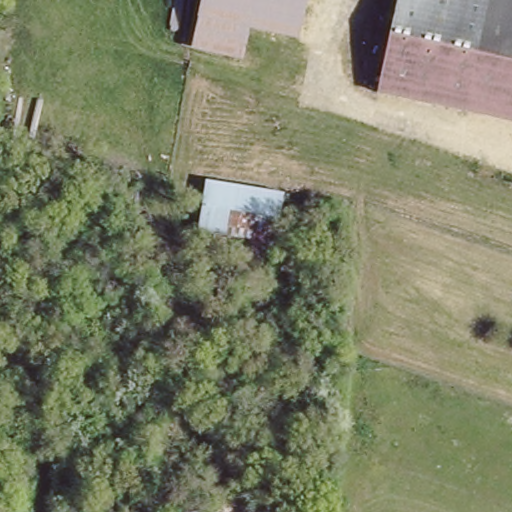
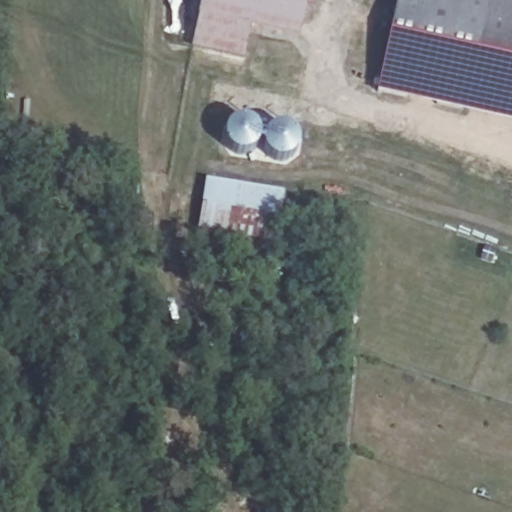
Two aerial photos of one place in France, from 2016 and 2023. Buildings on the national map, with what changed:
unchanged [(246,27),(239,62),(193,52),(203,0),(303,0),(296,38),(246,27)]
unchanged [(383,95),(401,0),(512,0),(512,123),(383,95)]
unchanged [(277,263),(244,257),(246,241),(196,234),(204,179),(288,193),(277,263)]

